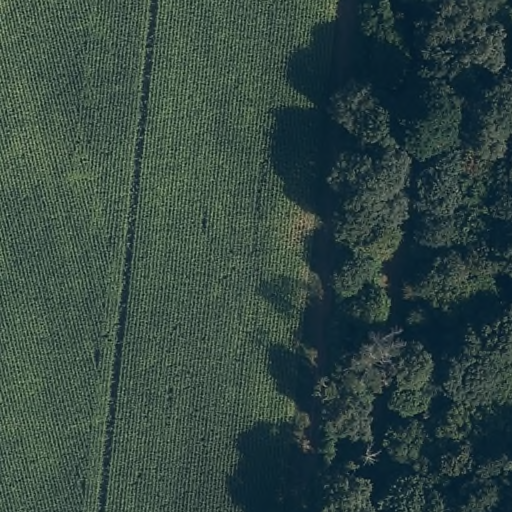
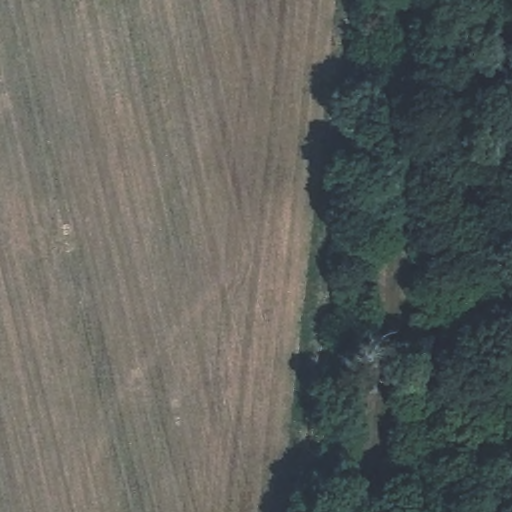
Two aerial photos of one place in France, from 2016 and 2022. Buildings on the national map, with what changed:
[]

